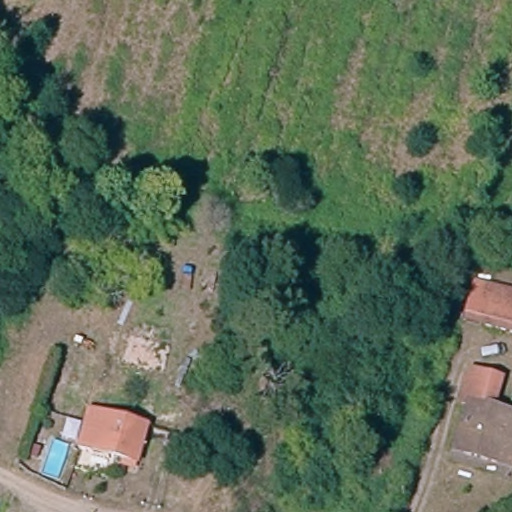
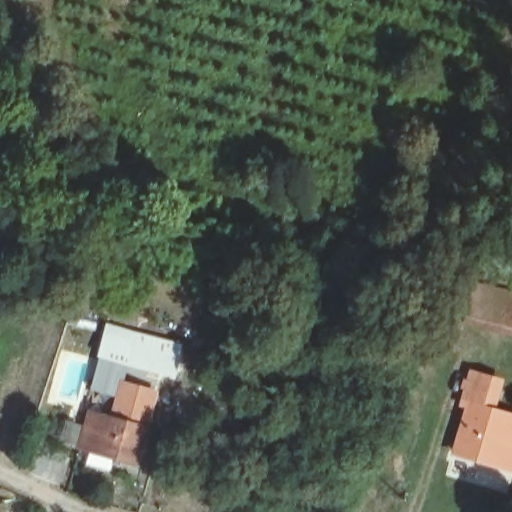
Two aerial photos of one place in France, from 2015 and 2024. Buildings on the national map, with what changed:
unchanged [(462,313),(471,287),(489,292),(512,298),(512,328),(462,313)]
new [(115,396),(90,389),(99,358),(96,357),(106,323),(184,344),(175,378),(128,366),(123,380),(159,390),(149,425),(110,415),(115,396)]
demolished [(103,352),(109,332),(157,346),(156,350),(177,356),(174,366),(179,367),(177,376),(174,376),(103,352)]
unchanged [(457,454),(471,407),(464,405),(472,375),(502,383),(493,413),(512,419),(512,471),(457,454)]
unchanged [(94,399),(102,402),(99,412),(151,426),(139,468),(79,450),(94,399)]

